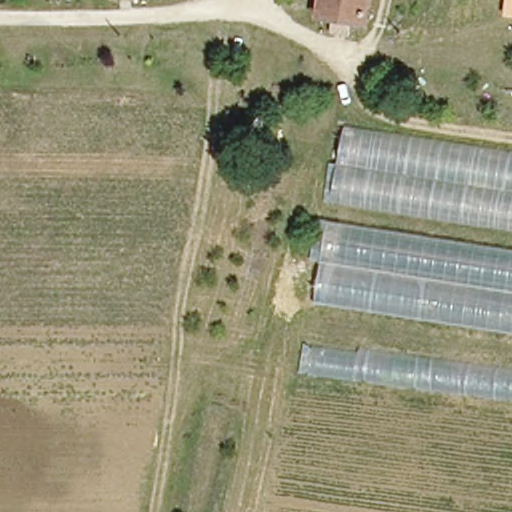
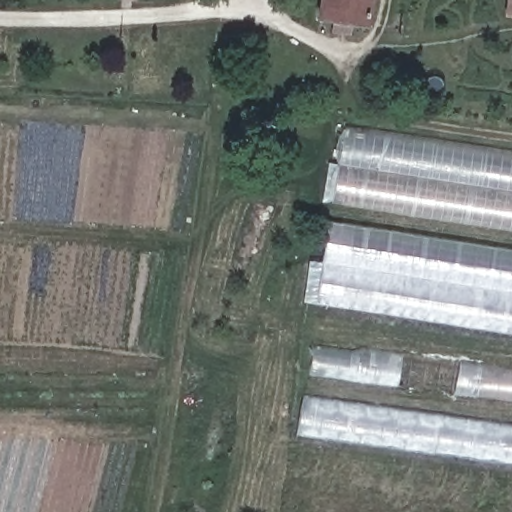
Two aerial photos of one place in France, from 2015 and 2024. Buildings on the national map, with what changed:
unchanged [(328,0),(373,0),(370,23),(326,18),(328,0)]
unchanged [(503,16),(506,0),(512,0),(512,17),(503,16)]
unchanged [(512,151),(512,230),(332,202),(344,124),(512,151)]
unchanged [(315,303),(327,220),(512,250),(512,334),(315,303)]
unchanged [(299,375),(304,345),(512,369),(512,399),(299,375)]
new [(302,395),(512,424),(512,464),(296,435),(302,395)]

